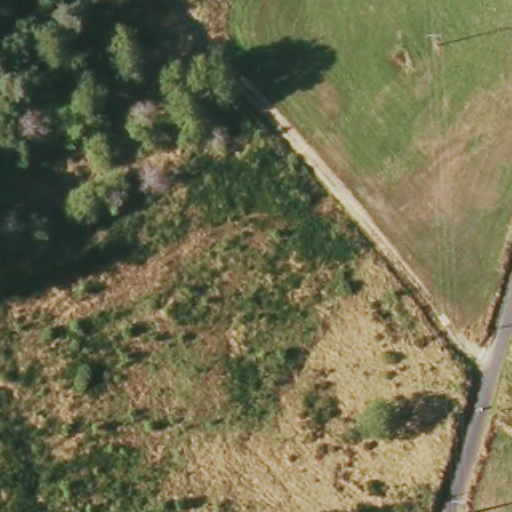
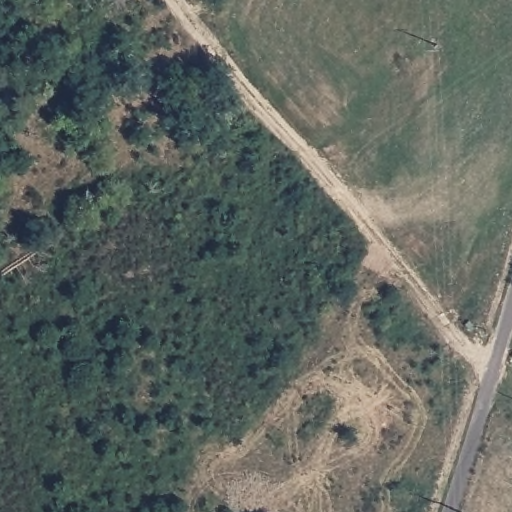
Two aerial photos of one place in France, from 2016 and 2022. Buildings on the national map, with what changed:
unchanged [(508,361),(512,362),(512,375),(504,374),(508,361)]

